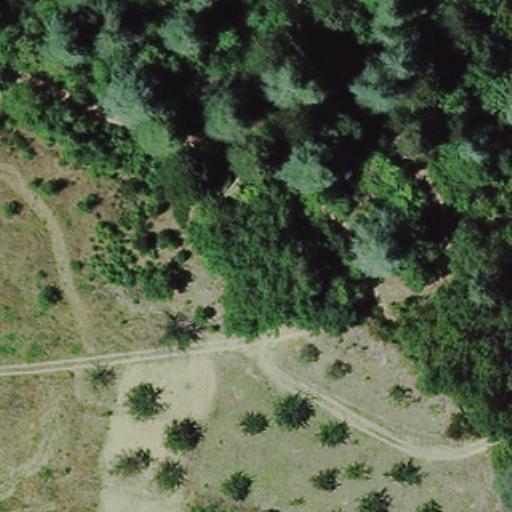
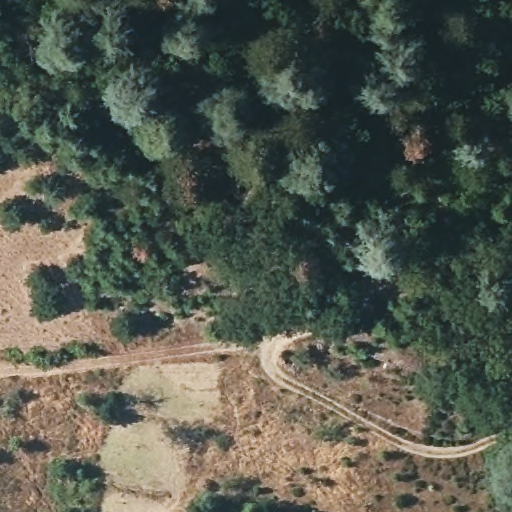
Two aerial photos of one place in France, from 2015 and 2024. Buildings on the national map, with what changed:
unchanged [(268,188),(249,212),(226,195),(246,172),(253,177),(268,188)]

